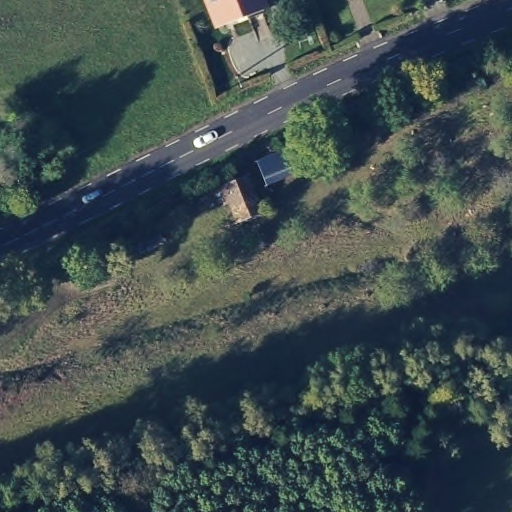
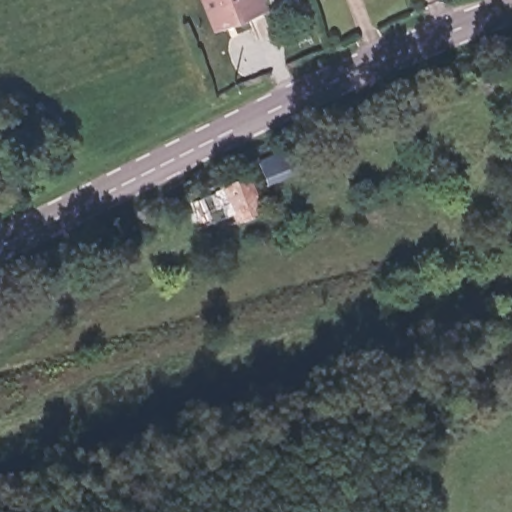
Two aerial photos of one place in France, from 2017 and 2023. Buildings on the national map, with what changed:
unchanged [(212,0),(263,0),(267,11),(220,24),(212,0)]
unchanged [(50,151),(61,170),(48,176),(36,157),(50,151)]

